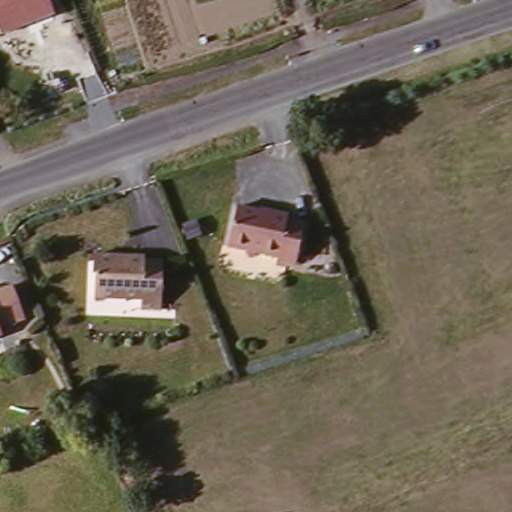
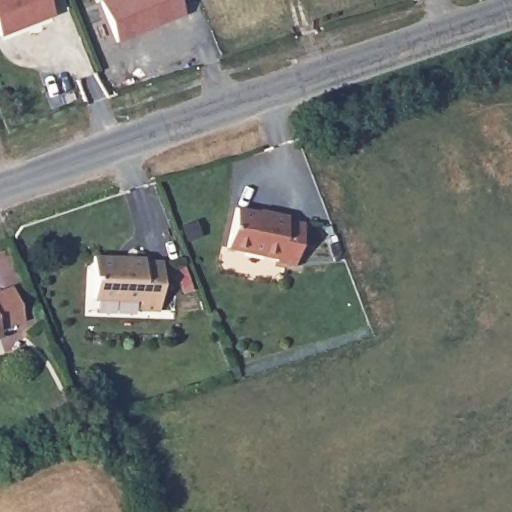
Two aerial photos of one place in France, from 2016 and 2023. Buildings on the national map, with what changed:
unchanged [(53,15),(0,36),(0,0),(48,0),(53,15)]
new [(118,42),(101,0),(178,0),(184,15),(118,42)]
unchanged [(50,88),(70,82),(78,110),(58,117),(50,88)]
unchanged [(236,205),(267,212),(268,210),(287,213),(286,217),(303,221),(296,261),(278,258),(278,255),(228,246),(236,205)]
unchanged [(163,305),(142,306),(142,296),(95,296),(95,273),(93,273),(94,254),(145,254),(145,256),(163,256),(163,305)]

